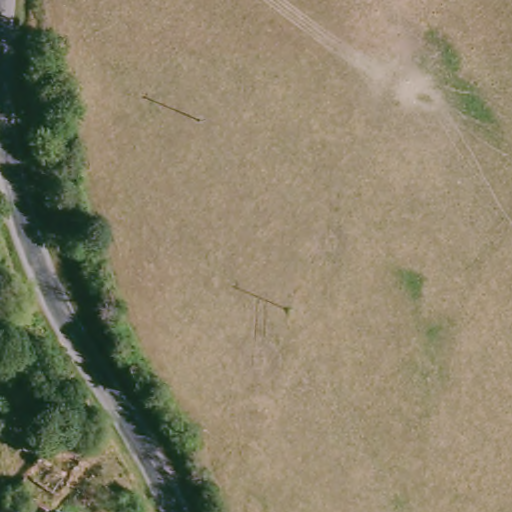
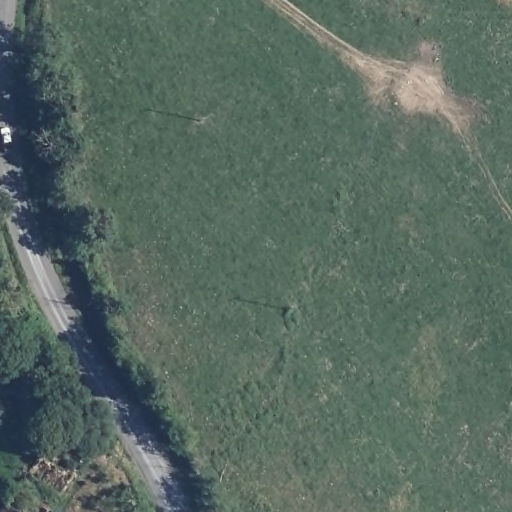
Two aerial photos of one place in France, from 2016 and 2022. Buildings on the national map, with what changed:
unchanged [(0,512),(0,508),(17,483),(47,505),(43,512),(0,512)]
unchanged [(52,512),(47,512),(48,509),(52,512)]

